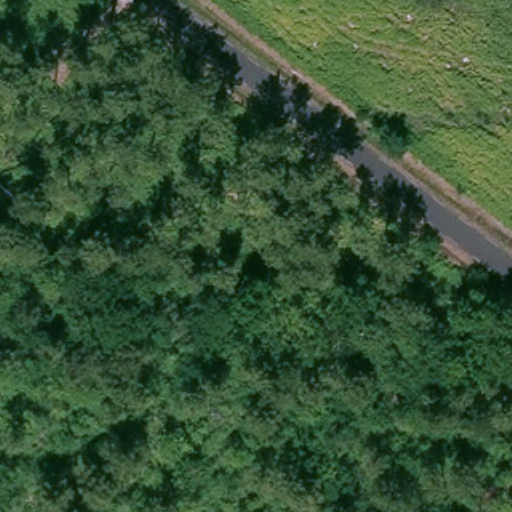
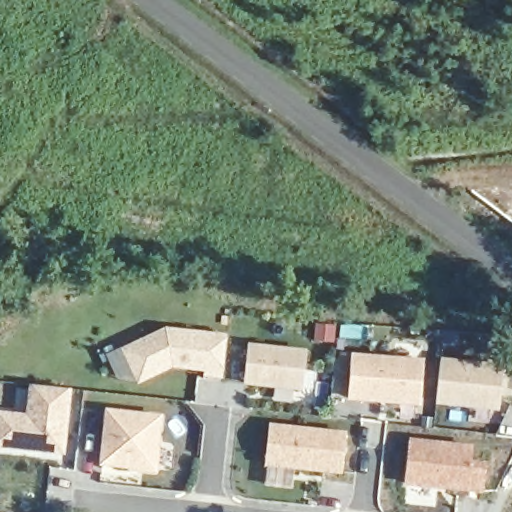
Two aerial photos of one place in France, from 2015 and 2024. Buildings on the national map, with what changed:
new [(123,350),(166,327),(229,335),(223,379),(204,378),(204,371),(171,370),(139,385),(123,350)]
new [(250,345),(307,350),(303,391),(244,385),(250,345)]
new [(352,354),(425,360),(422,405),(348,401),(352,354)]
new [(442,358),(505,366),(501,411),(438,405),(442,358)]
new [(31,386),(71,390),(65,455),(0,449),(0,413),(27,415),(31,386)]
new [(106,409),(163,415),(159,473),(101,465),(106,409)]
new [(271,423),(347,432),(343,475),(266,467),(271,423)]
new [(405,485),(410,440),(473,445),(472,462),(488,463),(484,493),(405,485)]

